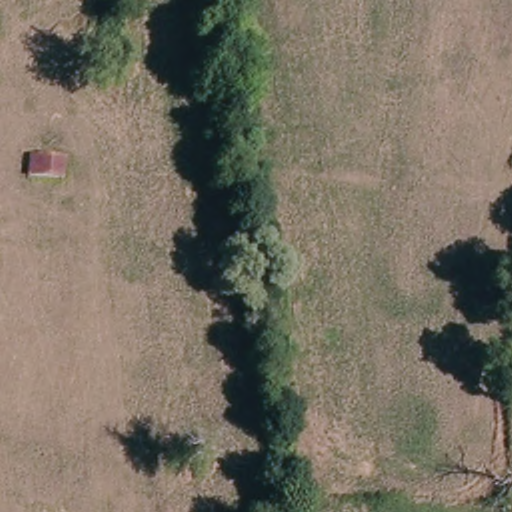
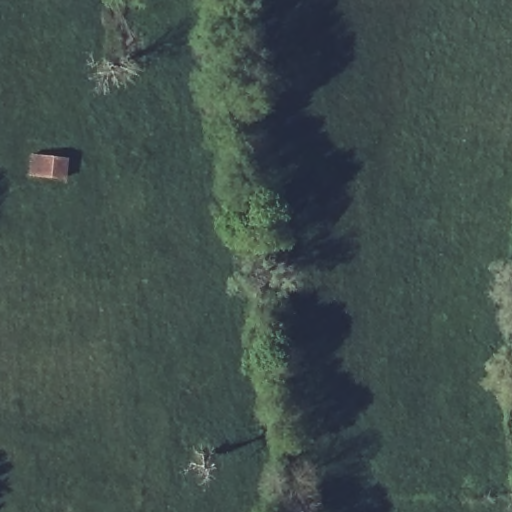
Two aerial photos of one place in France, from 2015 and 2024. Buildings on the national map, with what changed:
unchanged [(64,182),(27,180),(28,157),(66,158),(64,182)]

